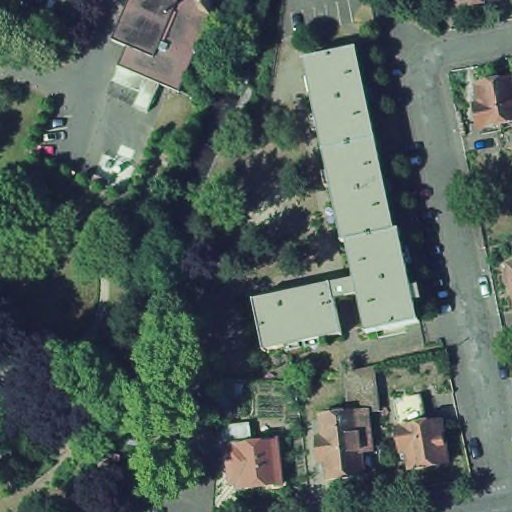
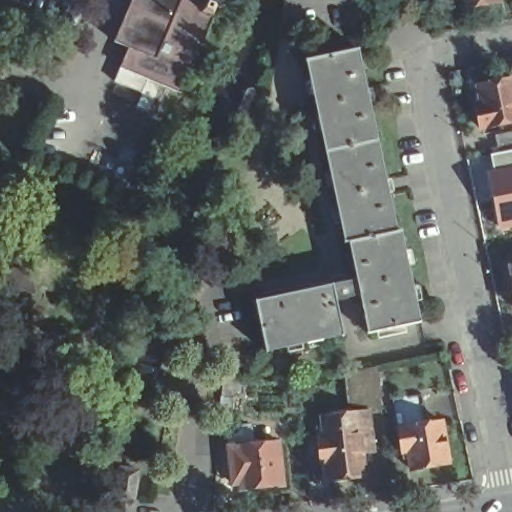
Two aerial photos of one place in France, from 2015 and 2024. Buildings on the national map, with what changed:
unchanged [(136,99),(108,86),(115,71),(122,53),(109,46),(129,0),(184,0),(200,8),(201,5),(213,9),(176,98),(157,90),(146,118),(131,111),(136,99)]
unchanged [(456,8),(454,0),(494,0),(494,1),(456,8)]
unchanged [(348,47),(366,135),(315,146),(296,56),(348,47)]
unchanged [(507,78),(512,100),(512,121),(475,128),(471,106),(476,104),(473,86),(507,78)]
unchanged [(491,135),(512,131),(512,147),(495,150),(491,135)]
unchanged [(366,135),(386,230),(338,240),(334,241),(315,146),(366,135)]
new [(486,170),(493,169),(490,154),(512,150),(512,227),(498,230),(486,170)]
unchanged [(255,351),(245,301),(287,292),(324,285),(347,280),(338,240),(386,230),(390,229),(410,322),(358,333),(350,295),(327,299),(335,334),(255,351)]
unchanged [(512,270),(512,306),(508,293),(506,293),(503,292),(501,279),(504,275),(505,275),(504,272),(512,270)]
unchanged [(375,366),(377,384),(345,388),(343,373),(375,366)]
unchanged [(448,469),(410,475),(406,457),(400,458),(396,435),(390,404),(420,399),(425,429),(440,426),(448,469)]
unchanged [(356,416),(362,460),(351,461),(354,482),(318,486),(315,467),(309,468),(306,444),(313,443),(310,421),(356,416)]
unchanged [(129,437),(133,432),(140,433),(143,440),(138,445),(131,443),(129,437)]
unchanged [(281,497),(253,500),(252,493),(234,495),(232,489),(226,490),(222,452),(220,436),(245,433),(247,449),(272,446),(272,454),(277,453),(281,497)]
unchanged [(115,498),(120,468),(138,471),(133,501),(115,498)]

